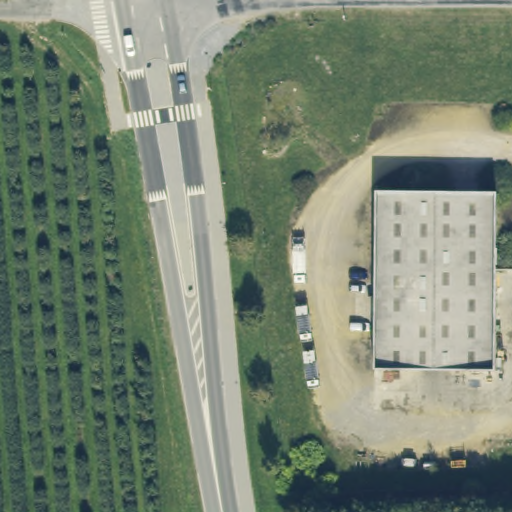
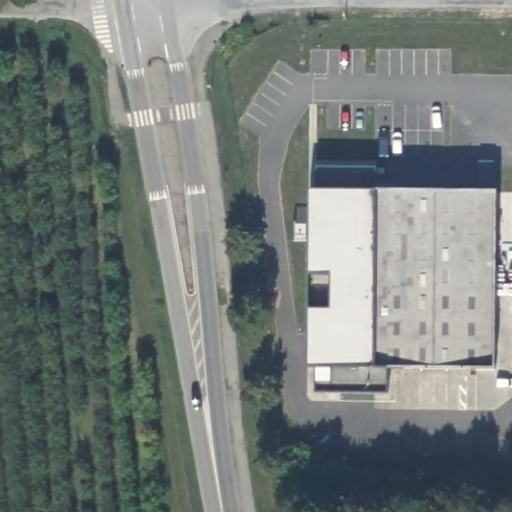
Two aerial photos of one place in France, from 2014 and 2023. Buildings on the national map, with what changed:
new [(376,369),(384,369),(386,395),(314,395),(312,368),(306,368),(309,191),(317,169),(376,170),(374,192),(378,190),(376,369)]
unchanged [(498,370),(376,369),(378,190),(501,192),(498,370)]

